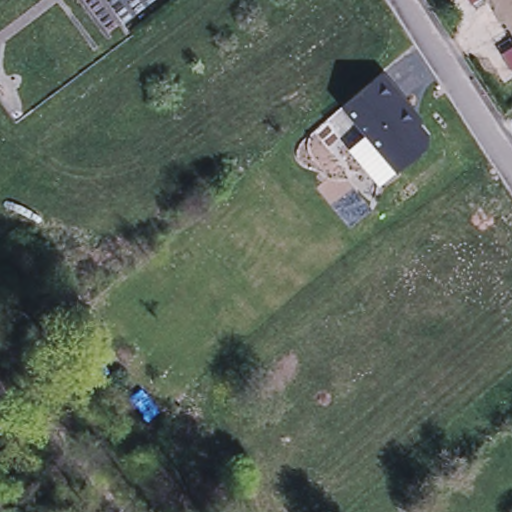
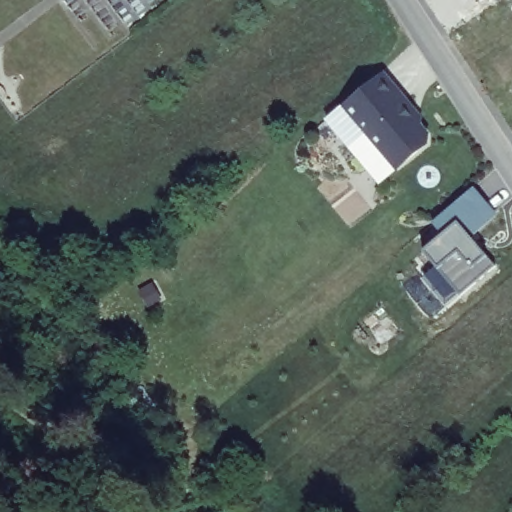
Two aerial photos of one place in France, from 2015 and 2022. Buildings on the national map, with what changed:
unchanged [(406,100),(402,104),(403,105),(368,134),(343,104),(382,72),(406,100)]
unchanged [(368,134),(403,105),(427,133),(427,134),(426,142),(397,167),(393,163),(368,134)]
new [(447,232),(436,220),(475,187),(496,212),(471,233),(497,263),(463,292),(426,250),(447,232)]

